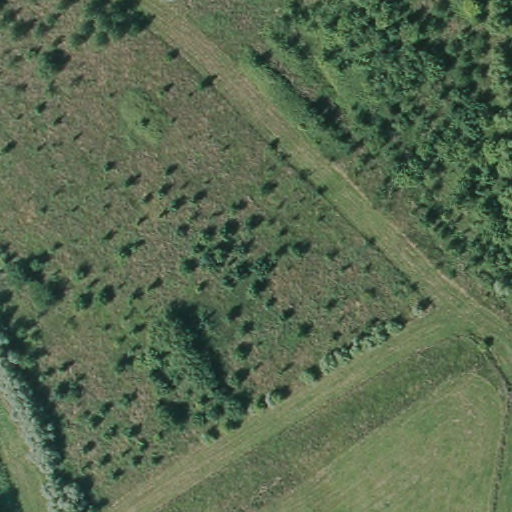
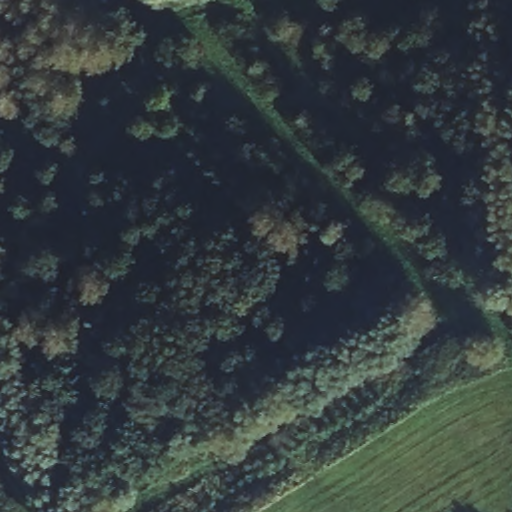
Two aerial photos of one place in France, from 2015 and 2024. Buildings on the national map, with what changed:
[]

